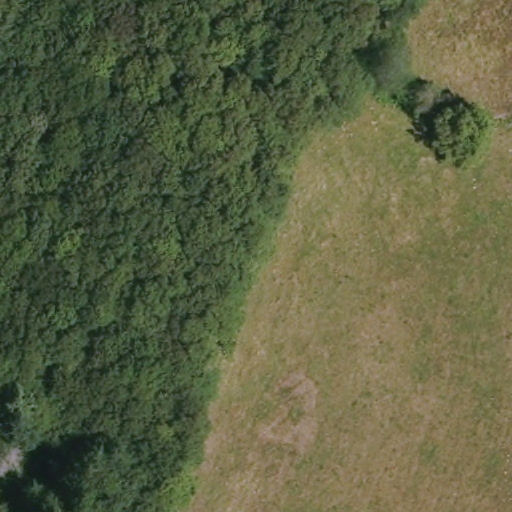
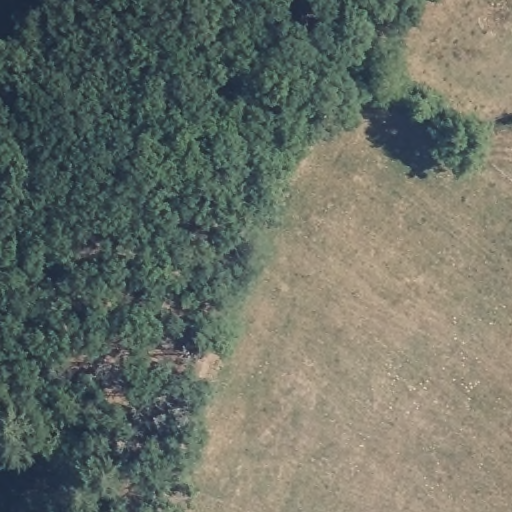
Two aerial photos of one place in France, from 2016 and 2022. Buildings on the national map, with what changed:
[]

